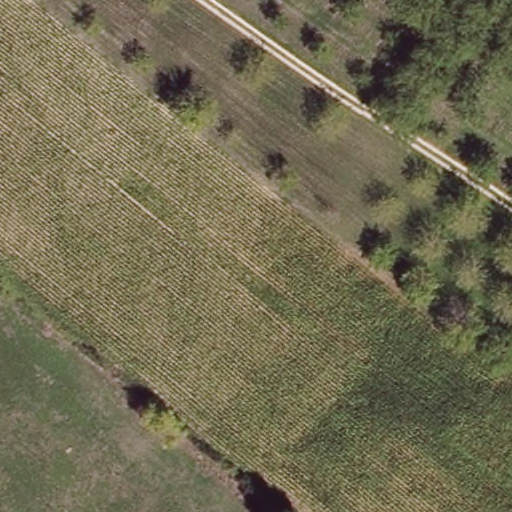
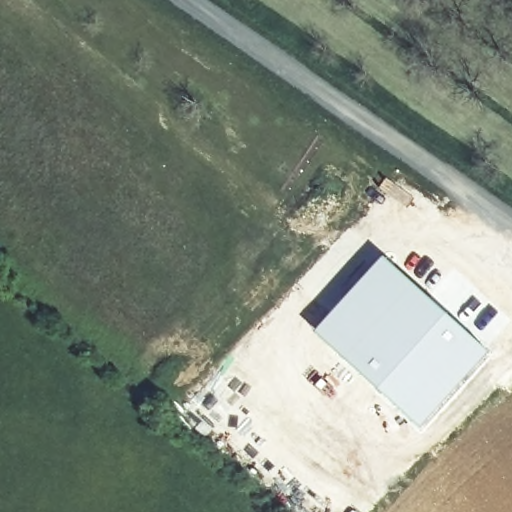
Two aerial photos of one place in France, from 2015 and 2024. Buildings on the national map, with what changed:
new [(384,257),(489,352),(421,427),(316,332),(384,257)]

